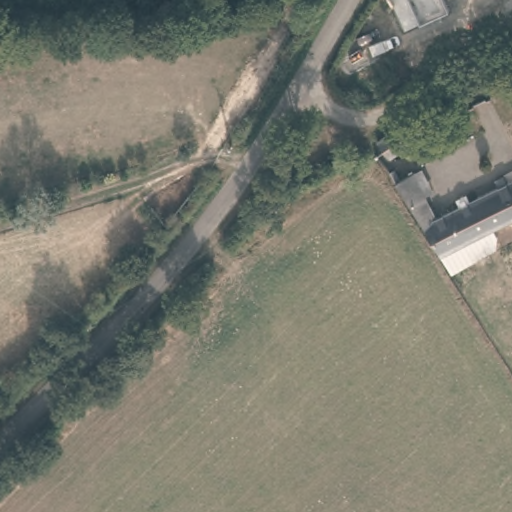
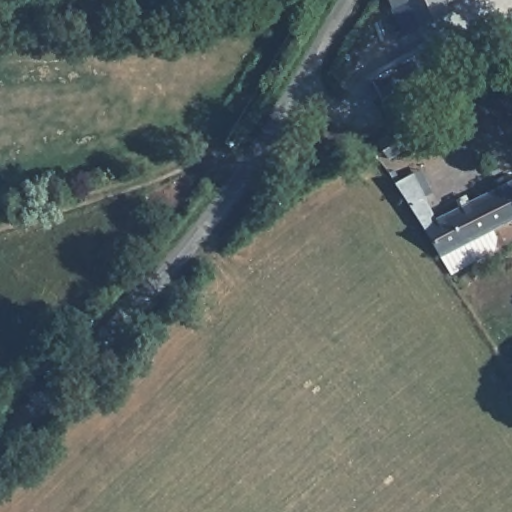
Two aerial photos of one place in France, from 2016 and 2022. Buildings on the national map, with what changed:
unchanged [(384,0),(408,0),(387,9),(384,0)]
unchanged [(406,120),(415,134),(385,155),(377,142),(406,120)]
unchanged [(441,257),(393,183),(411,173),(421,169),(433,193),(423,198),(434,219),(457,208),(455,201),(465,196),(469,202),(497,188),(493,180),(501,177),(506,184),(512,181),(512,219),(492,231),(441,257)]
unchanged [(441,257),(492,231),(497,240),(495,250),(451,275),(450,274),(440,258),(441,257)]

